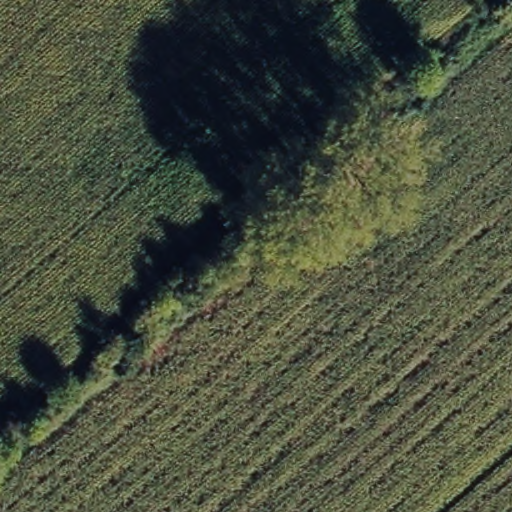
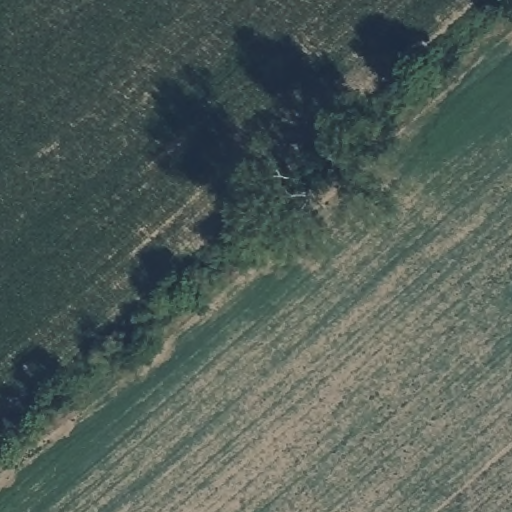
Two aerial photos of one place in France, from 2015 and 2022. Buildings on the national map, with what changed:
[]

